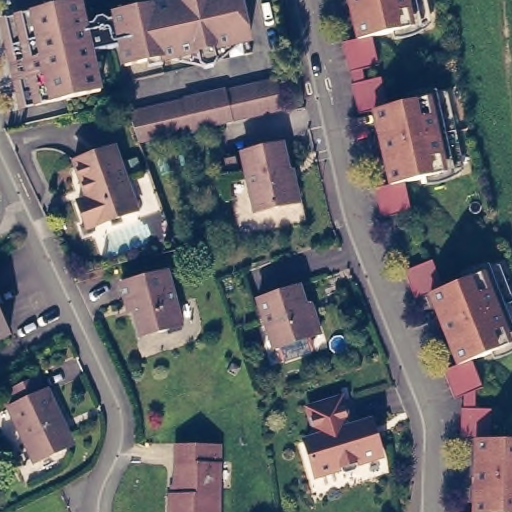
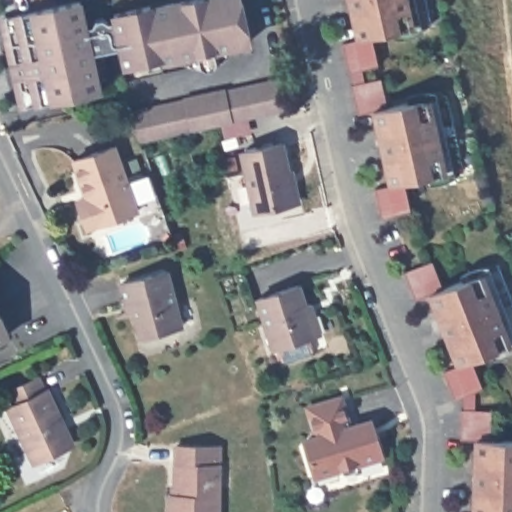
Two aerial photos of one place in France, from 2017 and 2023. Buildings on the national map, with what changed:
unchanged [(215,56),(212,61),(203,64),(198,61),(196,50),(161,57),(160,53),(123,61),(118,41),(112,43),(102,45),(90,48),(96,79),(97,81),(98,86),(72,91),(36,99),(15,10),(58,0),(79,0),(82,17),(86,33),(93,31),(90,21),(92,19),(96,15),(100,14),(107,16),(108,21),(114,20),(112,10),(148,1),(149,5),(170,0),(240,0),(248,36),(213,45),(215,56)]
unchanged [(366,31),(372,61),(343,66),(337,38),(351,35),(347,14),(342,5),(342,0),(418,0),(422,20),(366,31)]
unchanged [(0,16),(0,13),(15,10),(36,99),(20,103),(0,16)]
unchanged [(455,163),(397,176),(404,205),(376,211),(369,182),(383,178),(380,161),(375,149),(370,128),(371,120),(368,104),(352,108),(345,80),(375,73),(382,103),(438,90),(455,163)]
unchanged [(130,110),(152,105),(279,75),(282,90),(286,106),(221,121),(163,136),(140,141),(130,110)]
unchanged [(298,197),(258,207),(245,149),(285,139),(298,197)]
unchanged [(136,206),(85,223),(76,197),(85,194),(73,156),(113,141),(136,206)]
unchanged [(512,306),(512,337),(468,354),(480,383),(451,394),(440,364),(456,358),(450,343),(445,334),(437,311),(436,304),(430,288),(413,295),(401,266),(430,255),(440,284),(495,263),(512,306)]
unchanged [(181,320),(140,330),(130,295),(125,297),(120,278),(165,266),(181,320)]
unchanged [(307,309),(313,307),(319,326),(309,329),(312,341),(310,344),(283,352),(280,350),(276,339),(273,340),(258,291),(298,278),(307,309)]
unchanged [(0,333),(0,297),(12,328),(0,333)]
unchanged [(55,406),(54,413),(62,428),(60,438),(30,452),(3,399),(41,381),(55,406)]
unchanged [(370,435),(376,433),(382,452),(358,460),(354,467),(345,470),(335,466),(315,473),(303,437),(317,432),(308,403),(340,394),(350,422),(365,418),(370,435)]
unchanged [(485,510),(485,512),(455,512),(455,508),(470,509),(471,489),(470,488),(470,460),(473,451),(474,433),(458,432),(460,403),(490,405),(488,433),(512,434),(512,511),(485,510)]
unchanged [(220,442),(219,512),(171,512),(171,491),(175,491),(177,441),(220,442)]

